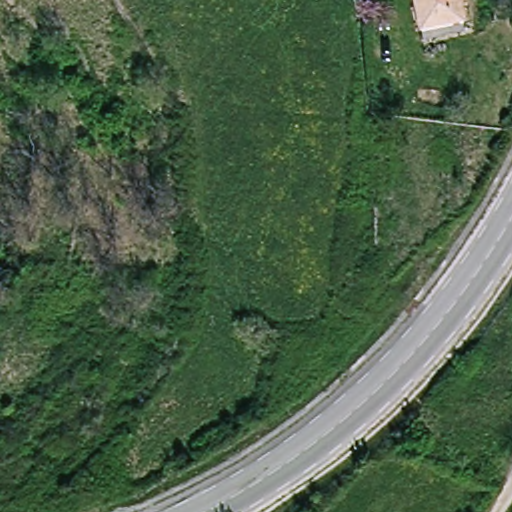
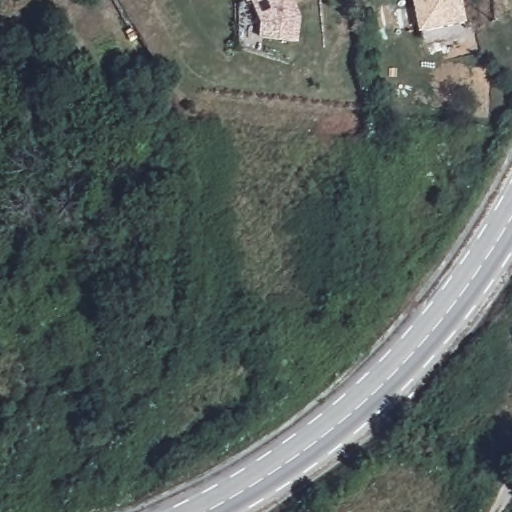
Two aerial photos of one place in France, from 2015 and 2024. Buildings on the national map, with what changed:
new [(250,1),(246,1),(246,0),(294,0),(300,15),(297,42),(258,37),(260,20),(250,1)]
unchanged [(463,0),(466,24),(424,30),(419,0),(463,0)]

